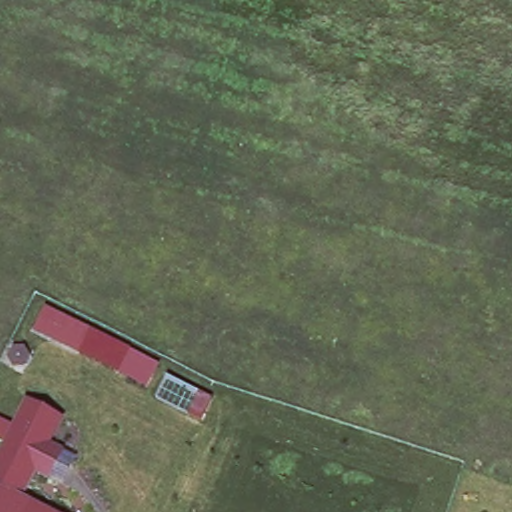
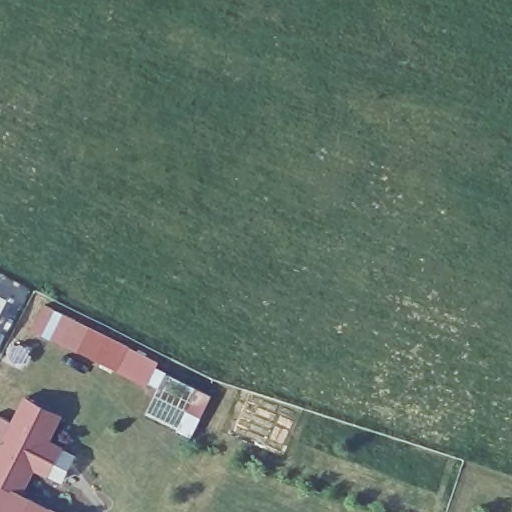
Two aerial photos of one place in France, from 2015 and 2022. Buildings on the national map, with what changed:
unchanged [(40,305),(90,329),(80,354),(29,330),(40,305)]
unchanged [(122,344),(159,363),(148,389),(110,371),(122,344)]
unchanged [(201,423),(155,402),(168,376),(214,399),(201,423)]
unchanged [(2,441),(0,439),(0,416),(13,422),(23,396),(63,415),(50,442),(62,447),(47,479),(33,472),(23,494),(58,512),(0,512),(0,446),(2,441)]

